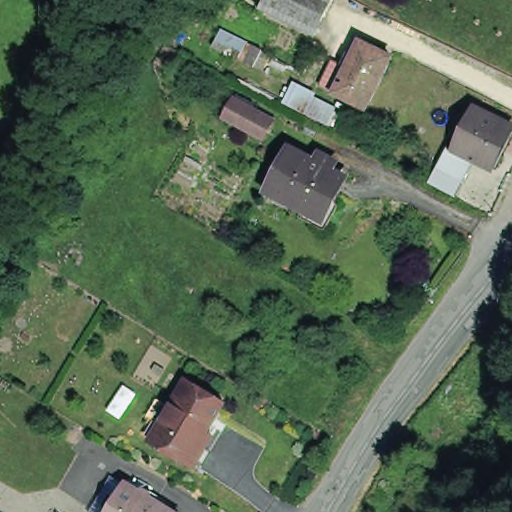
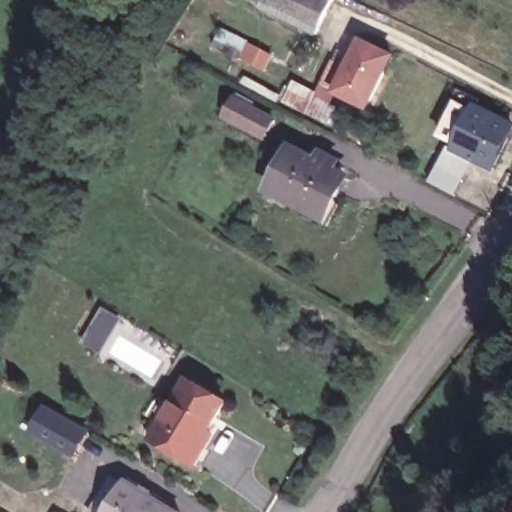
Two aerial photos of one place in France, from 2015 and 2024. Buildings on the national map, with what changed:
unchanged [(332,6),(318,39),(316,43),(260,15),(267,0),(321,0),(322,1),(326,3),(332,6)]
unchanged [(370,111),(339,95),(348,78),(341,75),(358,41),(364,44),(394,60),(370,111)]
unchanged [(281,108),(289,88),(331,109),(323,129),(281,108)]
unchanged [(224,119),(233,102),(272,123),(263,140),(224,119)]
unchanged [(507,130),(488,170),(476,164),(452,151),(473,113),(507,130)]
unchanged [(433,187),(452,151),(476,164),(459,199),(433,187)]
unchanged [(263,194),(284,153),(311,166),(316,158),(328,164),(324,173),(338,181),(319,216),(316,221),(301,213),(263,194)]
unchanged [(152,442),(188,382),(225,404),(202,443),(207,446),(194,468),(152,442)]
new [(29,433),(45,406),(91,432),(75,459),(29,433)]
unchanged [(122,490),(158,512),(108,512),(122,490)]

